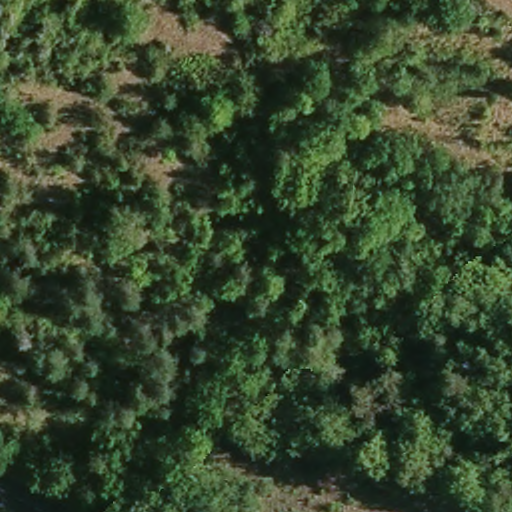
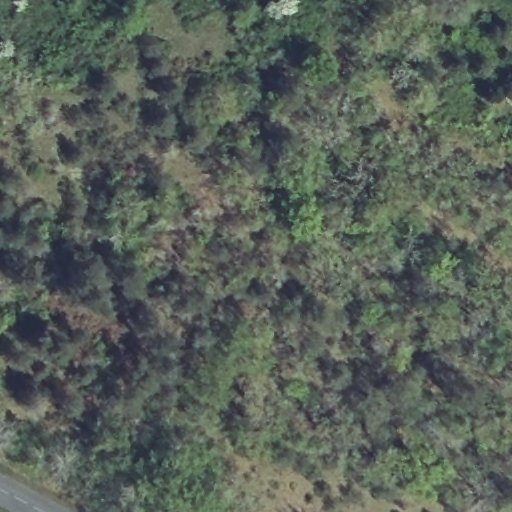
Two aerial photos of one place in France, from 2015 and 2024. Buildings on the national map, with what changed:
[]

